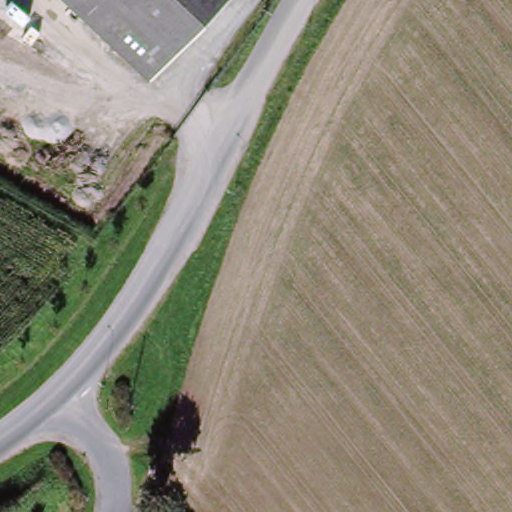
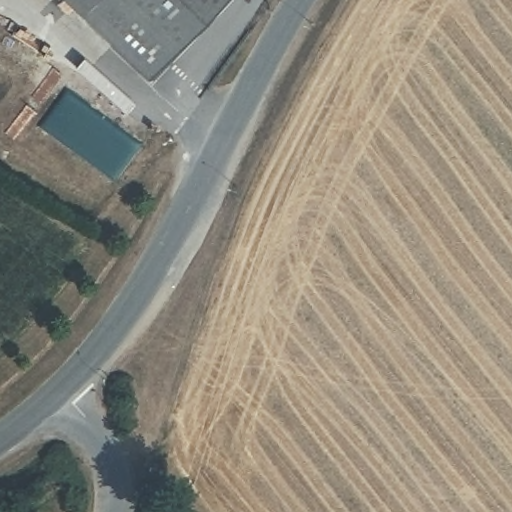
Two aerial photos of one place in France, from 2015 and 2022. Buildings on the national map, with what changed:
unchanged [(65,0),(222,0),(145,78),(65,0)]

